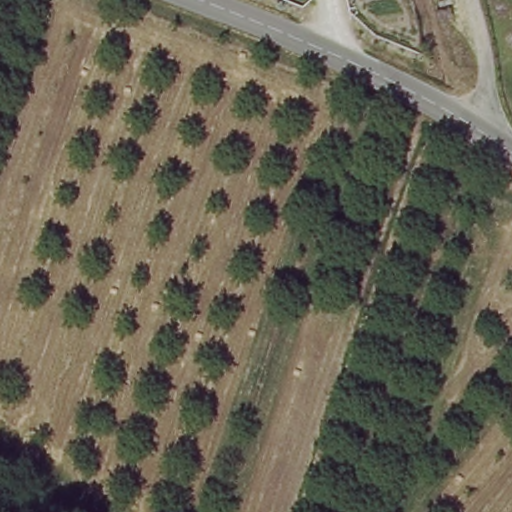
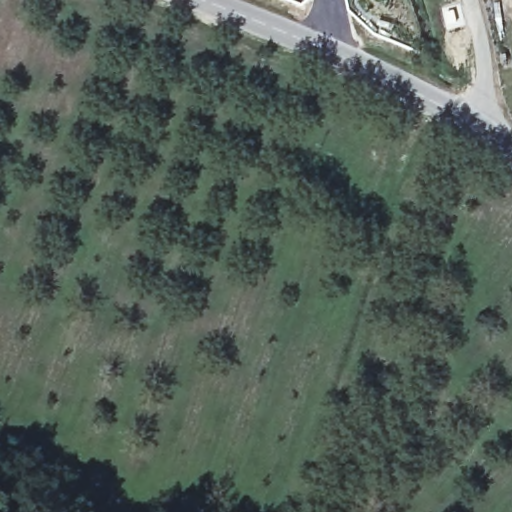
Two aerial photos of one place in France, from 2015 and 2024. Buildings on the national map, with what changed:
[]

